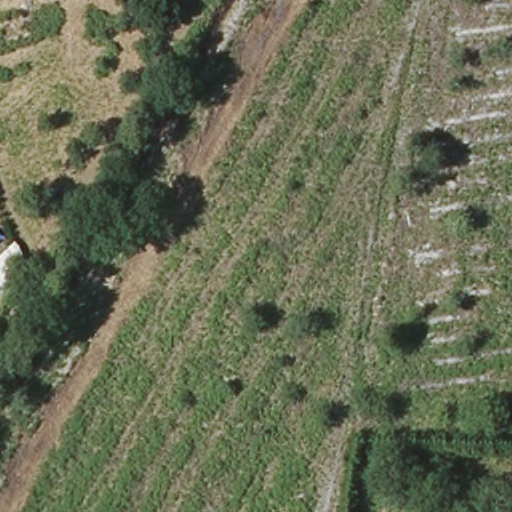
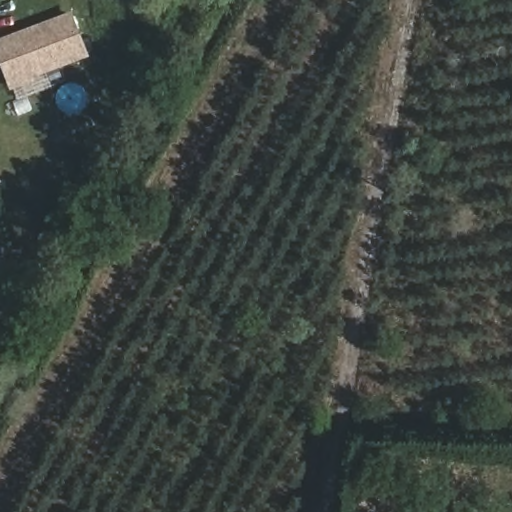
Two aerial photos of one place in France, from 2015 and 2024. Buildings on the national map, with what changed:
new [(35,80),(10,90),(0,63),(0,37),(72,10),(89,57),(33,76),(35,80)]

